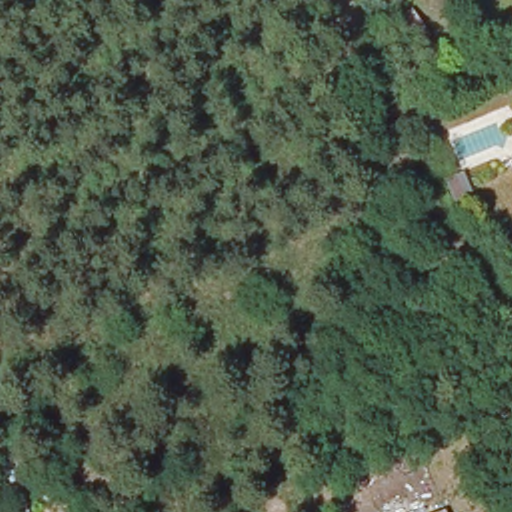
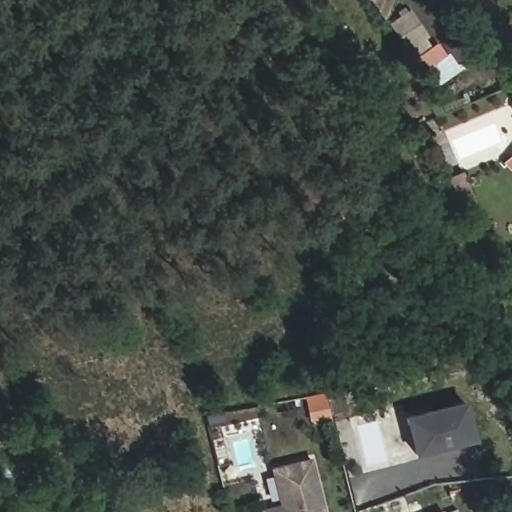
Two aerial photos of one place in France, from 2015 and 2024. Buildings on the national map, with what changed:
new [(377,0),(396,0),(389,19),(377,0)]
new [(410,11),(427,36),(409,49),(391,24),(410,11)]
unchanged [(512,158),(512,166),(507,161),(512,158)]
new [(306,398),(325,392),(327,398),(344,395),(347,415),(311,421),(306,398)]
new [(464,401),(474,442),(416,456),(406,416),(464,401)]
new [(270,466),(311,456),(325,512),(261,512),(260,508),(280,504),(270,466)]

